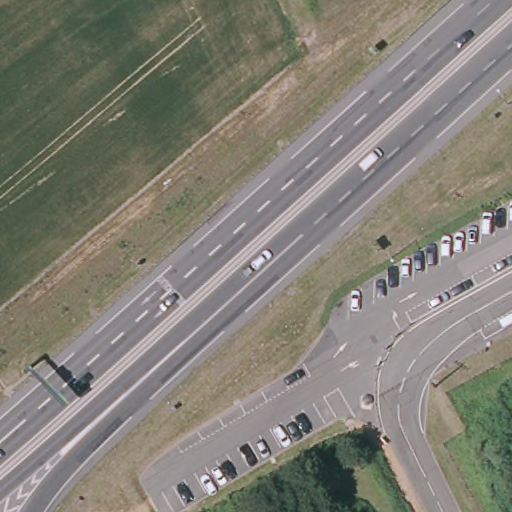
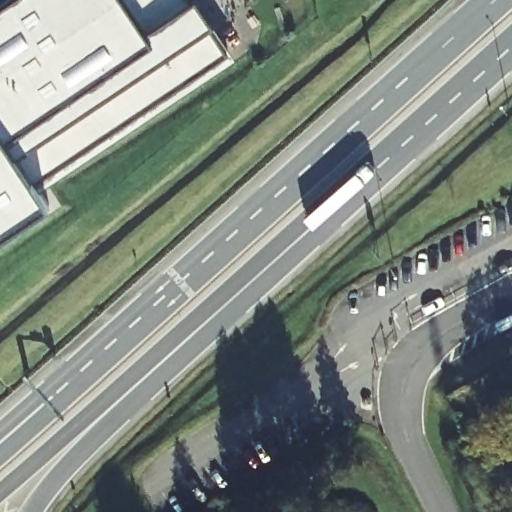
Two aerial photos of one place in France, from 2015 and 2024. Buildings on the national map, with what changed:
new [(9,0),(193,0),(233,57),(28,182),(39,204),(0,229),(0,6),(9,0)]

